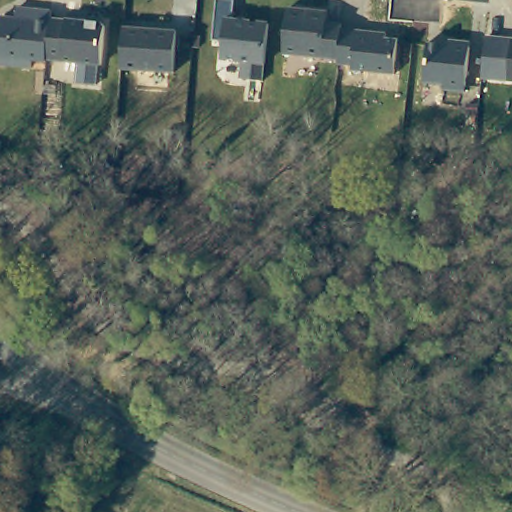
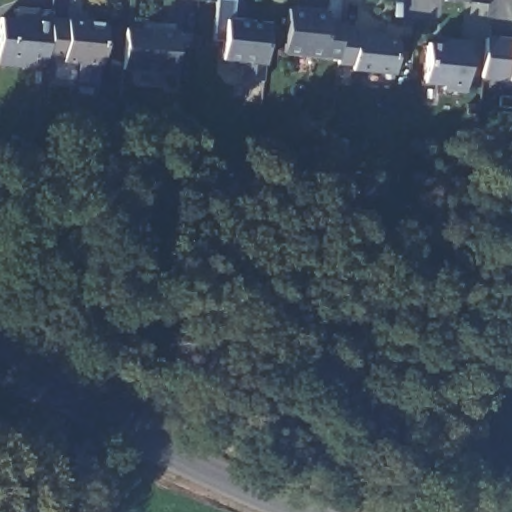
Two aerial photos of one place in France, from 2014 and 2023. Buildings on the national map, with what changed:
unchanged [(265,81),(241,78),(242,61),(222,59),(224,41),(215,38),(218,0),(224,0),(235,1),(235,19),(270,24),(265,81)]
unchanged [(98,66),(97,85),(79,83),(80,64),(33,62),(33,69),(0,65),(0,35),(2,15),(17,16),(19,7),(54,10),(54,19),(107,24),(102,66),(98,66)]
unchanged [(394,74),(351,69),(352,65),(338,65),(339,59),(284,54),(291,8),(328,11),(327,23),(342,24),(342,29),(388,34),(387,40),(398,41),(394,74)]
unchanged [(173,75),(121,70),(125,26),(177,32),(173,75)]
unchanged [(483,78),(488,36),(512,39),(512,82),(483,78)]
unchanged [(464,93),(443,90),(443,86),(425,85),(428,43),(448,45),(450,38),(472,42),(464,93)]

